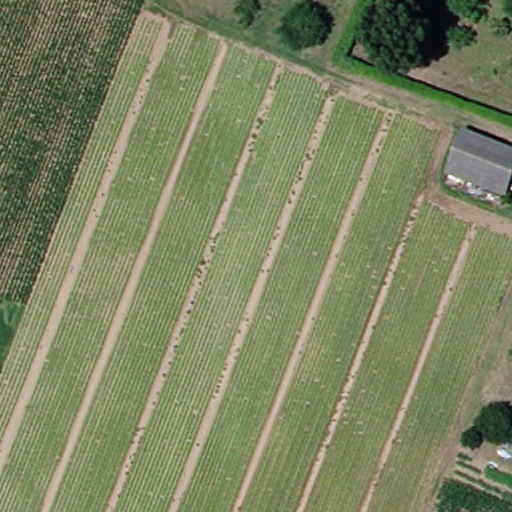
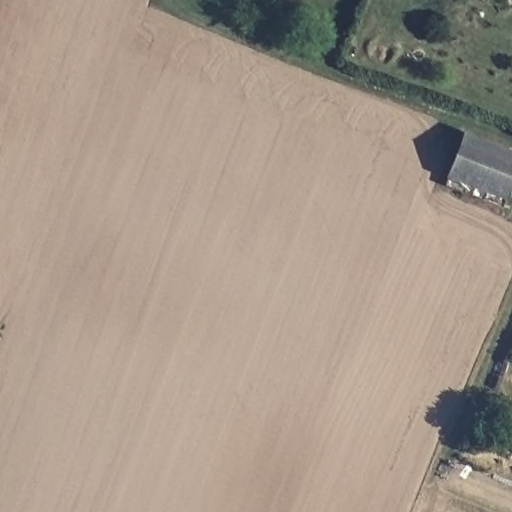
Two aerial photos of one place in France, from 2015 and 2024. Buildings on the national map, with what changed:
unchanged [(446,187),(451,176),(467,134),(512,152),(512,193),(510,199),(505,211),(446,187)]

